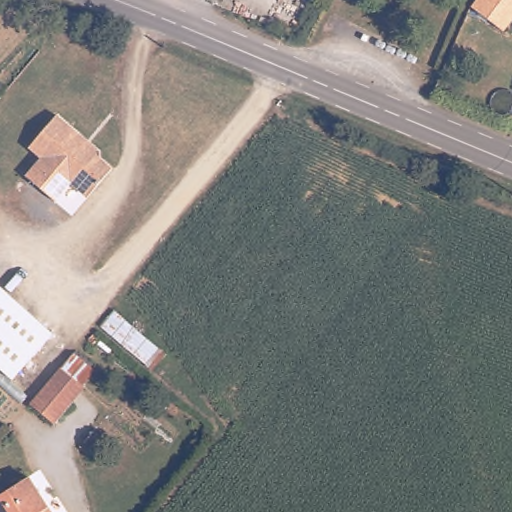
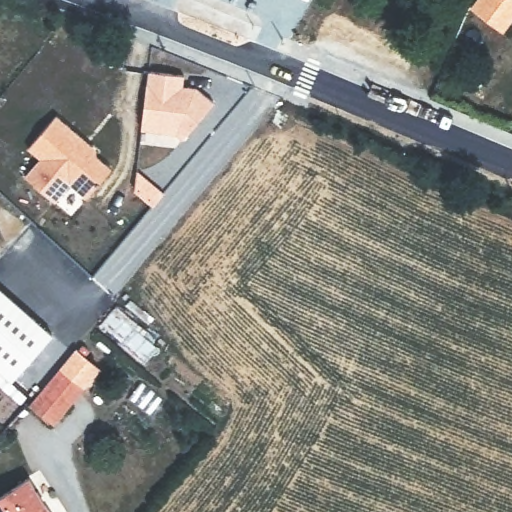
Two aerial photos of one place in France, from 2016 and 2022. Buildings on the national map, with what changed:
unchanged [(512,0),(512,21),(504,32),(469,6),(473,0),(512,0)]
new [(183,140),(177,134),(142,129),(148,71),(185,75),(184,86),(195,88),(214,104),(183,140)]
unchanged [(78,177),(61,198),(31,172),(46,153),(33,141),(59,109),(83,130),(100,144),(97,149),(100,151),(116,165),(94,190),(78,177)]
unchanged [(0,353),(0,275),(57,325),(20,370),(0,353)]
unchanged [(91,376),(59,415),(35,395),(68,355),(91,376)]
unchanged [(30,471),(54,512),(0,512),(0,489),(30,471)]

